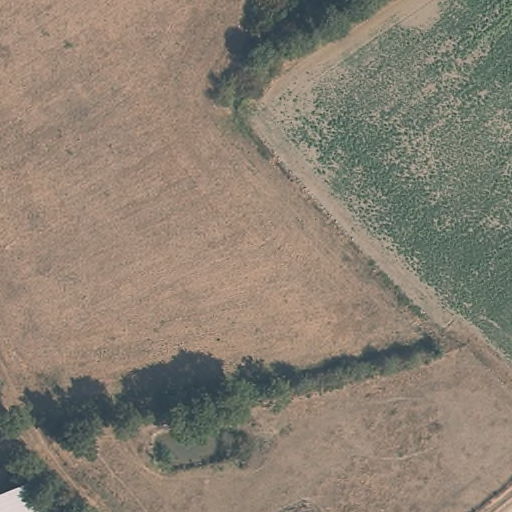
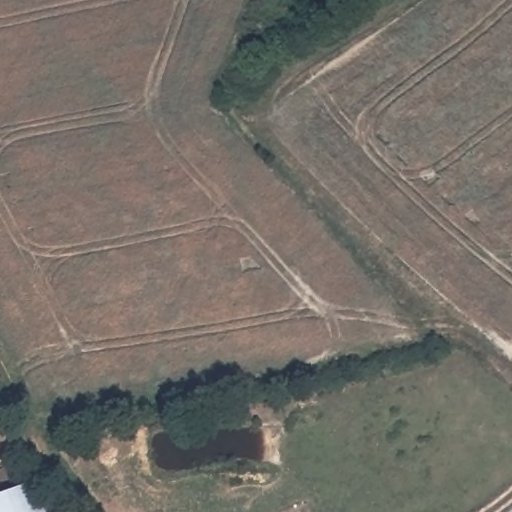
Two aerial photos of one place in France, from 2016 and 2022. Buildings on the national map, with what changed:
unchanged [(39,512),(0,512),(0,506),(36,498),(39,512)]

